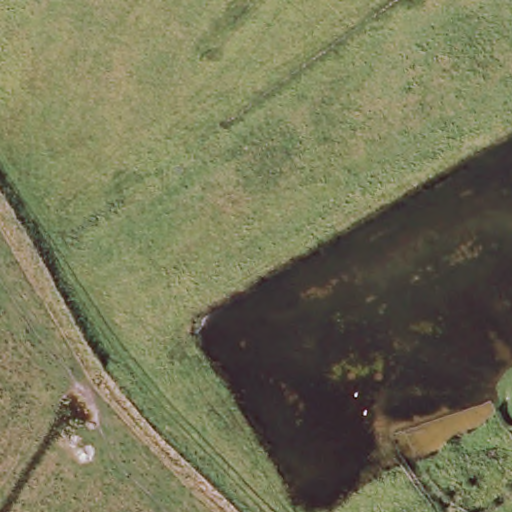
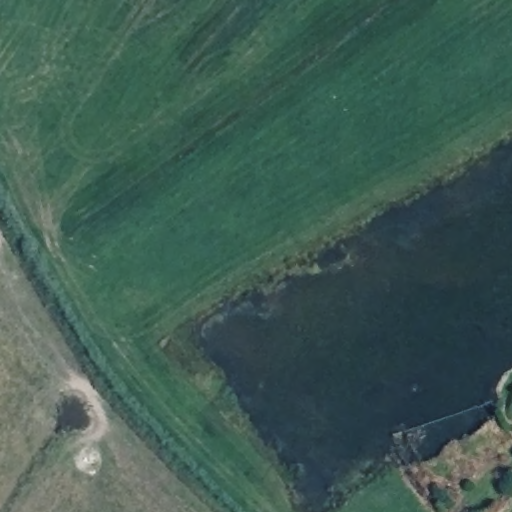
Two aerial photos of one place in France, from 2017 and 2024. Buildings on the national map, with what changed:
unchanged [(512,413),(508,408),(512,405),(512,413)]

